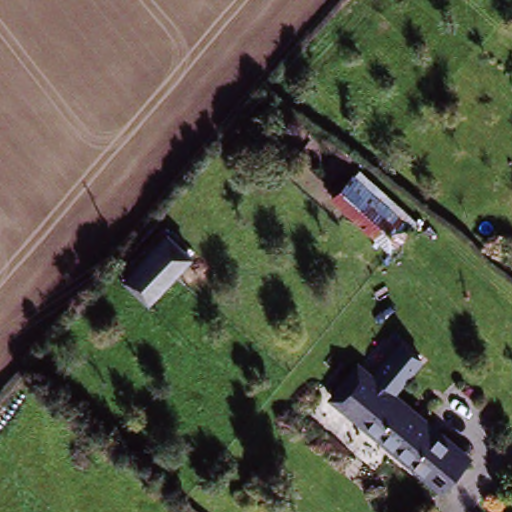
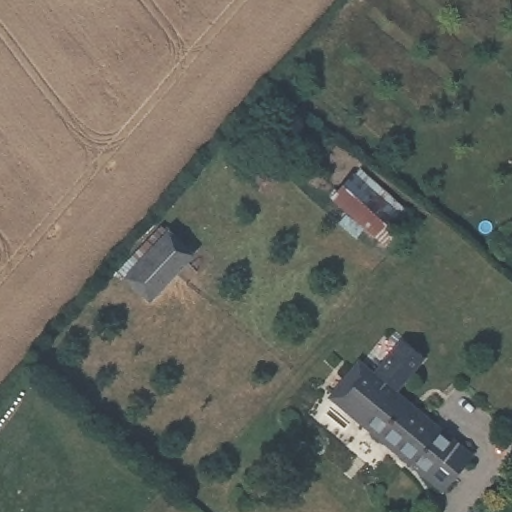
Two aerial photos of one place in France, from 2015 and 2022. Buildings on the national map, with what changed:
unchanged [(357,177),(412,229),(391,251),(337,198),(357,177)]
unchanged [(170,231),(195,255),(152,301),(125,279),(170,231)]
unchanged [(347,371),(362,383),(393,345),(413,362),(382,400),(427,437),(431,433),(465,461),(461,465),(440,490),(327,396),(347,371)]

